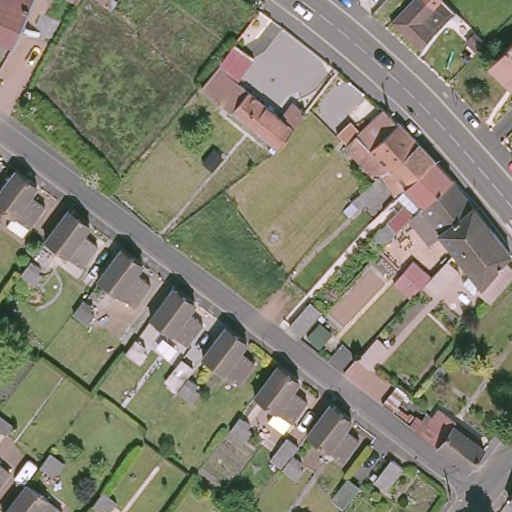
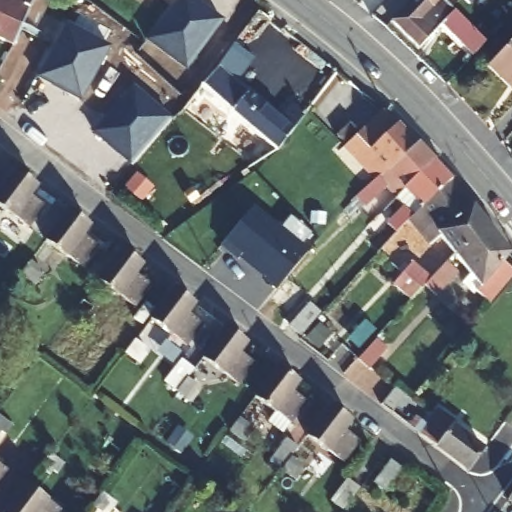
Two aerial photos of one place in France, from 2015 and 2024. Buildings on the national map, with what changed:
unchanged [(28,0),(9,44),(0,41),(0,0),(28,0)]
demolished [(90,0),(104,0),(110,4),(104,11),(90,0)]
new [(186,71),(143,39),(174,0),(193,0),(222,20),(186,71)]
demolished [(385,0),(372,14),(366,8),(358,1),(359,0),(385,0)]
unchanged [(419,48),(392,22),(414,0),(441,0),(452,11),(447,17),(440,11),(438,14),(432,20),(439,27),(432,34),(419,48)]
new [(470,0),(474,0),(472,2),(470,0)]
new [(455,11),(475,30),(464,42),(444,24),(455,11)]
new [(108,46),(80,100),(36,78),(65,25),(108,46)]
unchanged [(230,113),(200,87),(216,66),(234,43),(252,58),(233,81),(246,92),(230,113)]
unchanged [(512,80),(494,61),(512,43),(512,80)]
new [(175,119),(131,166),(92,133),(134,85),(175,119)]
unchanged [(290,105),(304,115),(291,131),(275,152),(230,113),(246,92),(278,120),(290,105)]
unchanged [(402,191),(397,197),(382,182),(375,188),(370,183),(379,175),(383,171),(352,138),(364,127),(390,103),(404,117),(407,114),(418,127),(425,135),(434,144),(442,153),(452,164),(460,173),(467,182),(480,198),(492,213),(499,222),(465,249),(447,228),(437,237),(417,212),(402,226),(387,240),(387,241),(379,234),(394,218),(411,200),(402,191)]
unchanged [(32,186),(47,197),(32,220),(0,197),(0,188),(20,161),(40,176),(32,186)]
unchanged [(68,210),(87,225),(80,235),(95,246),(79,268),(64,257),(62,258),(44,243),(68,210)]
new [(232,262),(215,248),(247,210),(302,256),(272,292),(258,281),(259,280),(234,260),(232,262)]
unchanged [(512,257),(512,282),(497,299),(483,286),(490,279),(465,249),(499,222),(512,240),(512,254),(510,256),(512,257)]
unchanged [(120,244),(126,248),(140,259),(132,269),(148,280),(131,303),(115,291),(115,292),(95,277),(120,244)]
unchanged [(429,280),(421,287),(417,292),(402,279),(422,256),(440,272),(450,262),(457,255),(467,266),(445,287),(435,277),(430,281),(429,280)]
unchanged [(29,263),(38,270),(35,274),(40,277),(32,287),(19,276),(29,263)]
unchanged [(187,303),(180,313),(195,324),(177,347),(162,335),(142,321),(166,287),(187,303)]
unchanged [(80,302),(90,308),(87,313),(91,316),(85,325),(70,315),(80,302)]
unchanged [(224,327),(244,342),(237,352),(252,363),(235,385),(220,374),(219,375),(200,360),(224,327)]
unchanged [(365,368),(354,359),(357,356),(374,339),(383,348),(367,366),(365,368)]
unchanged [(142,347),(139,352),(144,355),(137,364),(122,353),(132,340),(142,347)]
unchanged [(185,369),(168,391),(156,382),(172,360),(185,369)]
unchanged [(289,386),(304,397),(288,419),(272,407),(270,408),(252,394),(276,361),(282,365),(296,376),(289,386)]
unchanged [(185,374),(195,381),(192,385),(197,389),(189,398),(175,388),(185,374)]
unchanged [(402,395),(390,411),(380,404),(392,388),(402,395)]
unchanged [(328,400),(348,415),(342,424),(356,435),(340,458),(324,446),(322,447),(303,433),(328,400)]
unchanged [(412,418),(417,423),(419,421),(424,425),(436,409),(452,422),(449,426),(482,450),(466,470),(407,425),(412,418)]
unchanged [(247,425),(244,429),(249,433),(242,442),(227,431),(237,418),(247,425)]
unchanged [(10,426),(3,436),(0,434),(0,420),(10,426)]
unchanged [(289,452),(300,460),(297,465),(301,468),(295,477),(279,465),(289,452)]
unchanged [(62,465),(55,474),(52,471),(48,476),(37,467),(47,454),(62,465)]
unchanged [(381,456),(392,465),(376,488),(364,479),(381,456)]
unchanged [(7,474),(0,484),(0,468),(7,474)]
unchanged [(333,502),(321,493),(338,471),(350,480),(333,502)]
unchanged [(512,484),(512,495),(507,491),(512,484)]
unchanged [(45,499),(45,501),(60,512),(5,512),(25,485),(45,499)]
unchanged [(90,504),(99,512),(84,512),(90,504)]

